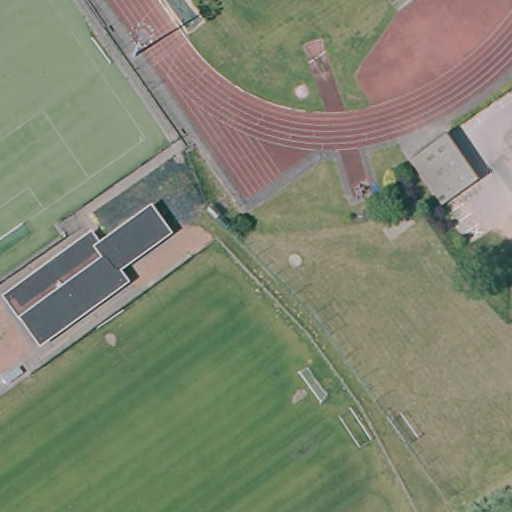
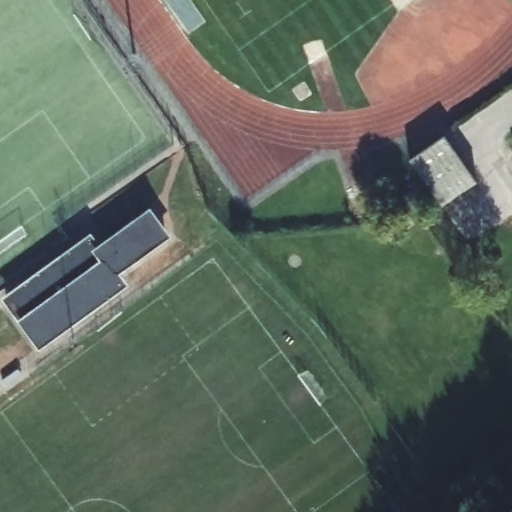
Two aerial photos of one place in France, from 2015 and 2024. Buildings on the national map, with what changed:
unchanged [(434,209),(403,162),(437,137),(469,184),(434,209)]
unchanged [(90,253),(142,217),(158,239),(107,276),(115,287),(31,348),(0,304),(0,301),(83,242),(90,253)]

